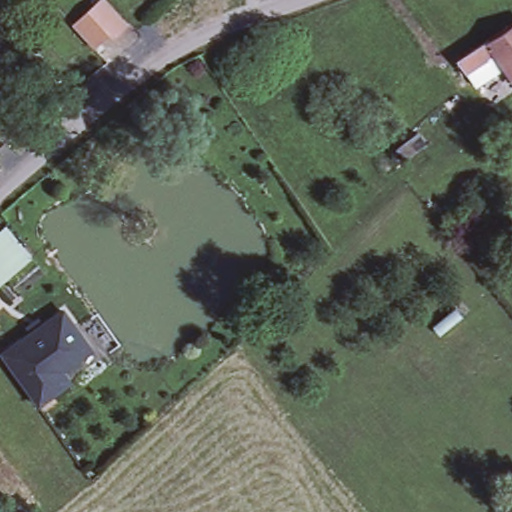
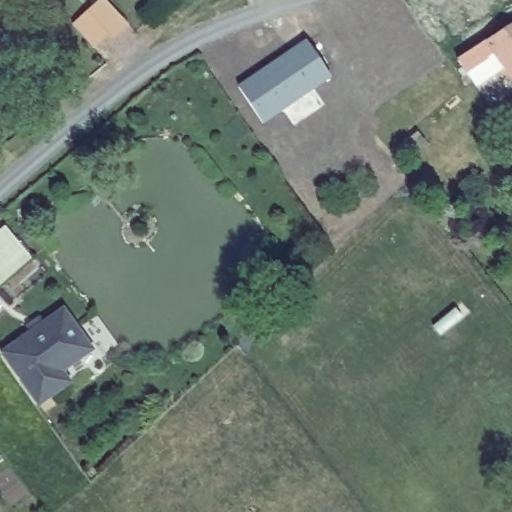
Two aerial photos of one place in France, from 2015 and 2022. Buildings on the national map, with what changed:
unchanged [(94,5),(108,20),(117,29),(103,42),(80,19),(94,5)]
unchanged [(455,60),(480,45),(493,35),(512,23),(512,63),(500,45),(486,54),(491,60),(468,78),(455,60)]
new [(307,41),(331,75),(264,120),(243,87),(307,41)]
unchanged [(30,122),(10,99),(12,96),(21,89),(35,104),(46,95),(53,102),(33,120),(30,122)]
unchanged [(428,142),(404,160),(394,149),(417,130),(428,142)]
unchanged [(35,257),(0,287),(0,229),(5,225),(35,257)]
unchanged [(95,350),(67,369),(75,383),(37,408),(4,352),(66,306),(95,350)]

